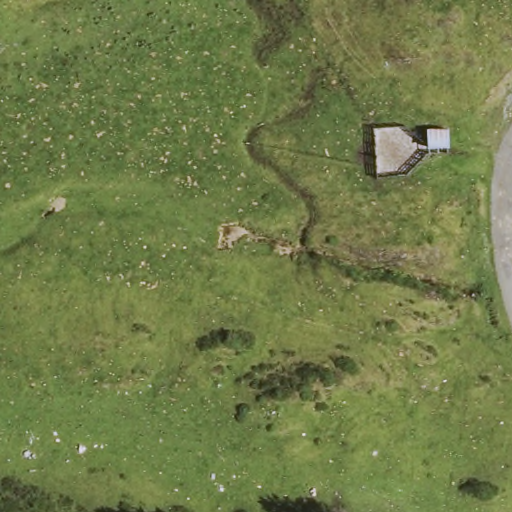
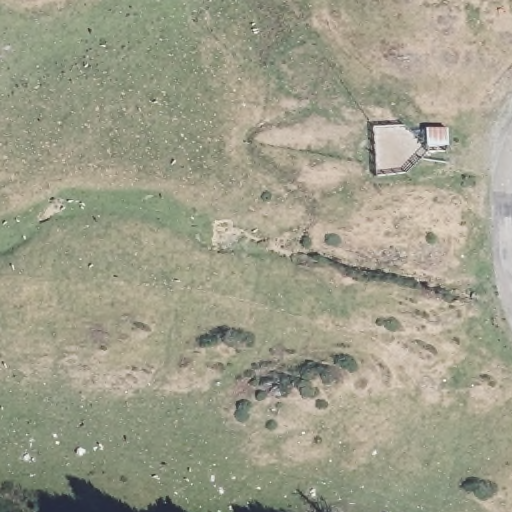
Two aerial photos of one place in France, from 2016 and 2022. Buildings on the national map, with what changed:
unchanged [(450,131),(451,143),(451,157),(430,157),(429,131),(450,131)]

